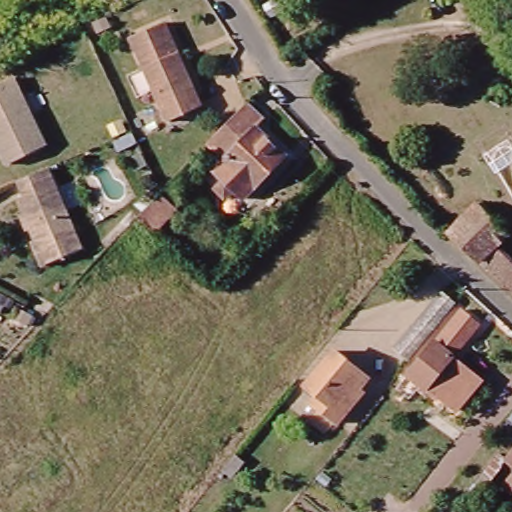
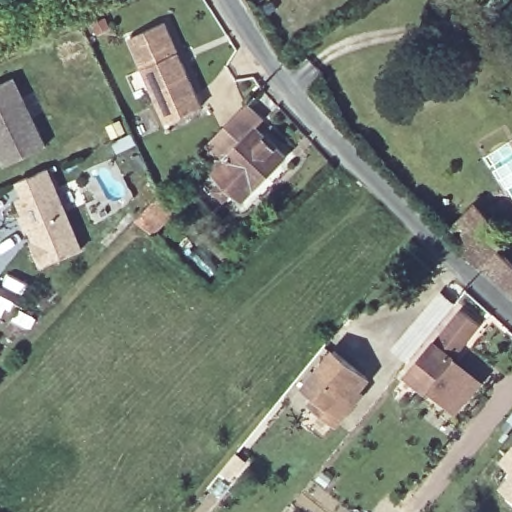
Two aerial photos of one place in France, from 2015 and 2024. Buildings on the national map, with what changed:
unchanged [(162,22),(201,106),(166,122),(128,38),(162,22)]
unchanged [(4,165),(0,155),(0,84),(14,78),(46,146),(4,165)]
unchanged [(242,199),(234,191),(226,200),(213,187),(221,179),(213,171),(224,159),(207,142),(245,102),(264,120),(255,128),(284,155),(242,199)]
unchanged [(19,179),(49,167),(82,248),(42,265),(32,242),(37,240),(19,196),(25,194),(19,179)]
unchanged [(152,232),(138,217),(157,195),(172,210),(152,232)]
unchanged [(476,204),(506,234),(495,246),(512,262),(512,293),(448,233),(476,204)]
unchanged [(407,361),(393,348),(440,293),(453,304),(407,361)]
unchanged [(388,397),(458,311),(477,326),(449,358),(485,383),(456,417),(423,389),(420,387),(412,396),(414,398),(402,411),(388,397)]
unchanged [(310,402),(317,395),(305,385),(333,351),(366,378),(351,398),(354,401),(336,423),(310,402)]
unchanged [(505,465),(512,455),(512,471),(505,465)]
unchanged [(503,489),(512,479),(512,496),(503,489)]

